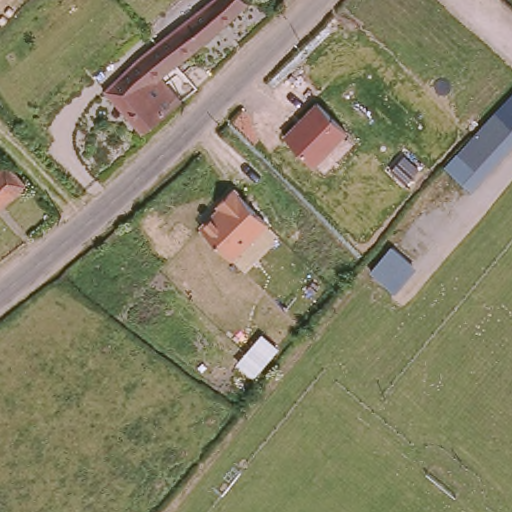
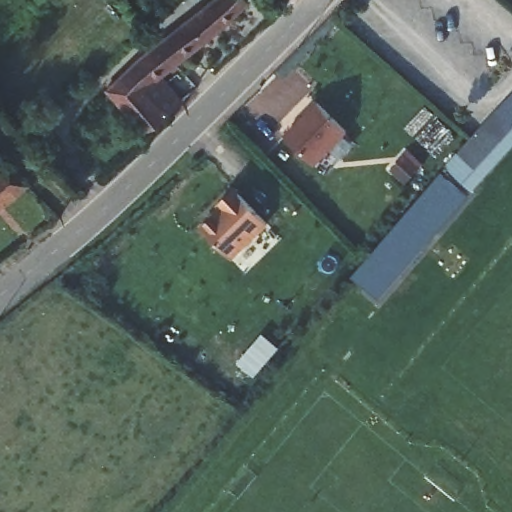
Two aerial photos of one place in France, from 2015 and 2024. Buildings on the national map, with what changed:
unchanged [(246,4),(162,81),(185,105),(165,124),(149,139),(112,100),(127,82),(160,45),(162,42),(211,0),(244,0),(246,4)]
unchanged [(512,146),(471,193),(443,169),(512,96),(512,146)]
unchanged [(315,102),(347,132),(314,167),(284,137),(315,102)]
unchanged [(1,155),(0,157),(0,154),(1,155)]
unchanged [(8,162),(30,182),(0,207),(0,169),(8,162)]
new [(378,299),(352,276),(440,174),(466,197),(378,299)]
unchanged [(233,261),(197,228),(233,191),(267,224),(233,261)]
demolished [(394,286),(370,266),(392,242),(415,260),(394,286)]
unchanged [(278,348),(254,376),(237,363),(262,334),(278,348)]

